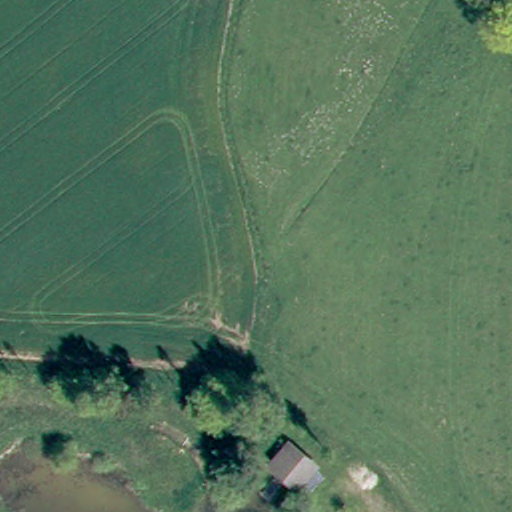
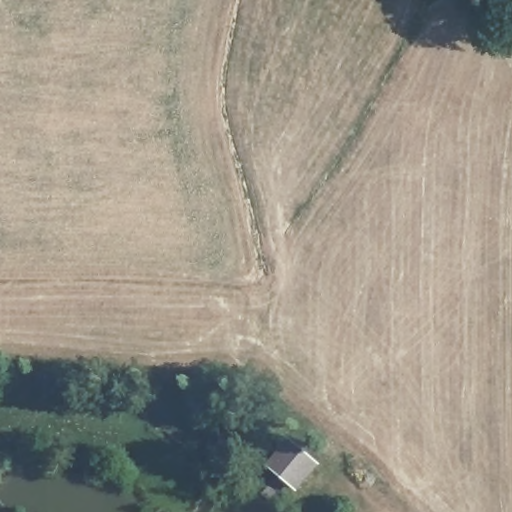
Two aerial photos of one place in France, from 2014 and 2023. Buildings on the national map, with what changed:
unchanged [(276,470),(284,451),(320,466),(312,485),(276,470)]

